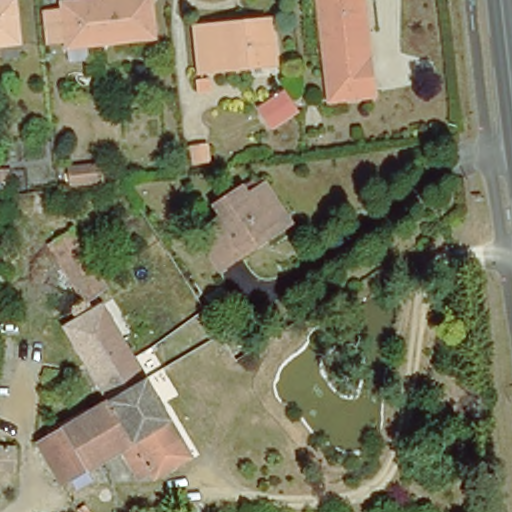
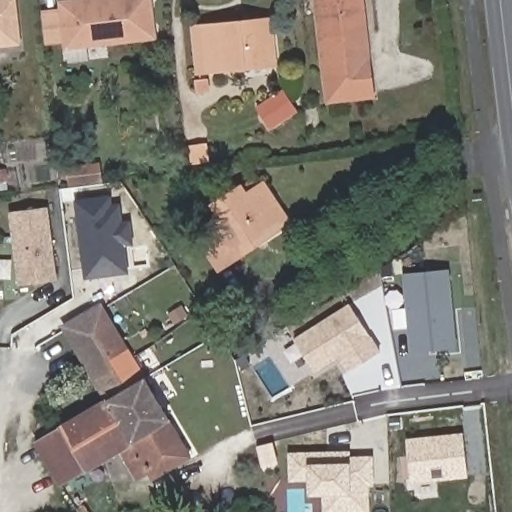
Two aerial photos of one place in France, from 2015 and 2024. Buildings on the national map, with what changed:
unchanged [(14,0),(17,37),(0,39),(0,0),(14,0)]
unchanged [(146,0),(150,34),(62,44),(61,33),(44,35),(41,11),(59,10),(58,0),(146,0)]
unchanged [(329,101),(317,0),(362,0),(373,97),(329,101)]
unchanged [(200,67),(196,23),(245,19),(270,16),(271,25),(275,59),(200,67)]
unchanged [(290,95),(297,109),(280,121),(271,106),(290,95)]
unchanged [(87,170),(89,185),(60,189),(59,189),(57,174),(87,170)]
unchanged [(196,230),(215,216),(209,205),(219,199),(236,187),(253,175),(260,185),(280,217),(285,222),(252,244),(233,256),(219,266),(215,260),(196,230)]
new [(84,279),(75,200),(111,196),(111,204),(121,203),(123,221),(130,220),(134,245),(125,246),(129,274),(84,279)]
new [(8,212),(48,207),(57,281),(17,286),(8,212)]
demolished [(71,227),(104,282),(94,289),(96,293),(86,300),(48,240),(71,227)]
new [(454,348),(410,352),(403,276),(447,271),(454,348)]
unchanged [(190,452),(155,474),(150,467),(140,473),(121,443),(62,479),(37,438),(109,396),(65,321),(79,313),(75,306),(85,300),(90,307),(101,301),(122,337),(190,452)]
new [(380,352),(345,373),(338,360),(315,373),(293,340),(349,304),(380,352)]
new [(432,482),(433,493),(417,495),(416,483),(411,484),(406,438),(462,432),(467,478),(432,482)]
demolished [(14,448),(13,471),(0,470),(0,448),(14,448)]
new [(369,486),(370,512),(323,512),(323,496),(308,496),(308,481),(290,482),(288,452),(352,450),(351,456),(371,456),(373,486),(369,486)]

